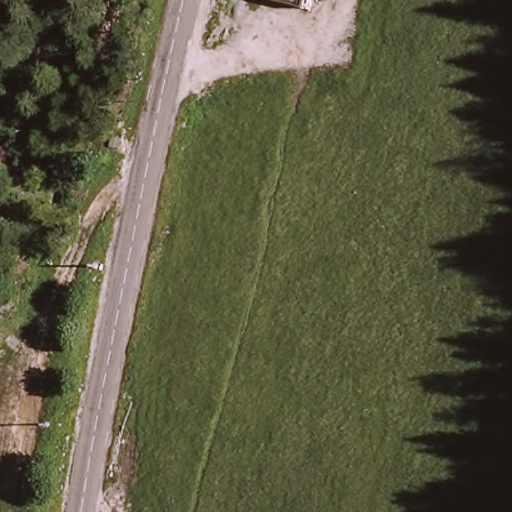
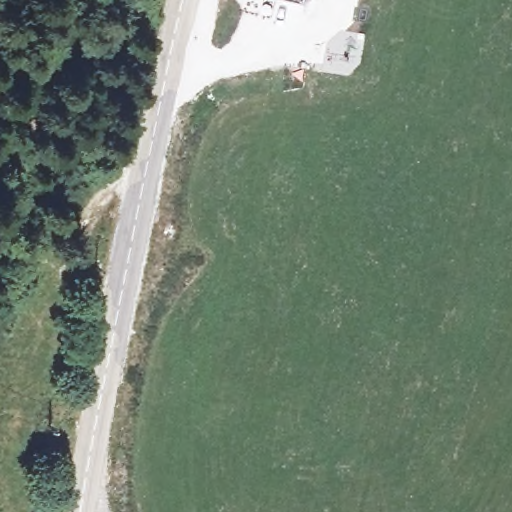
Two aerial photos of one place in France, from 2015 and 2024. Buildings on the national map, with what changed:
unchanged [(247,0),(310,0),(307,10),(247,1),(247,0)]

